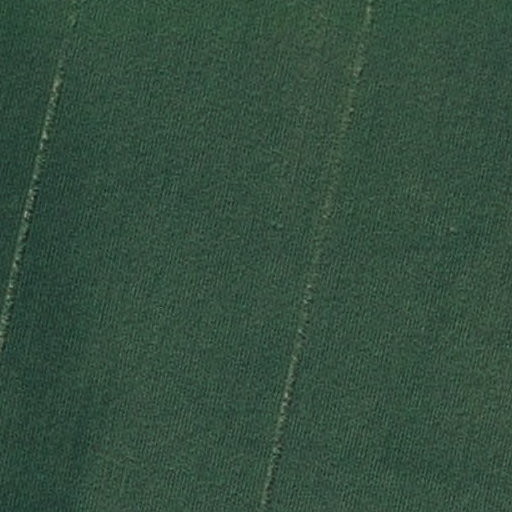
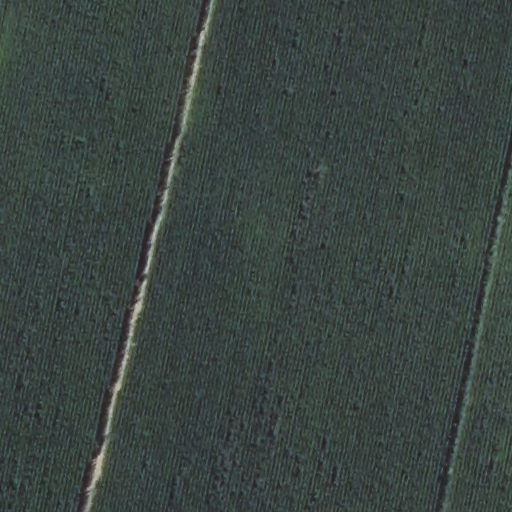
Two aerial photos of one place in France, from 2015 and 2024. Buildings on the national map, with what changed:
[]

